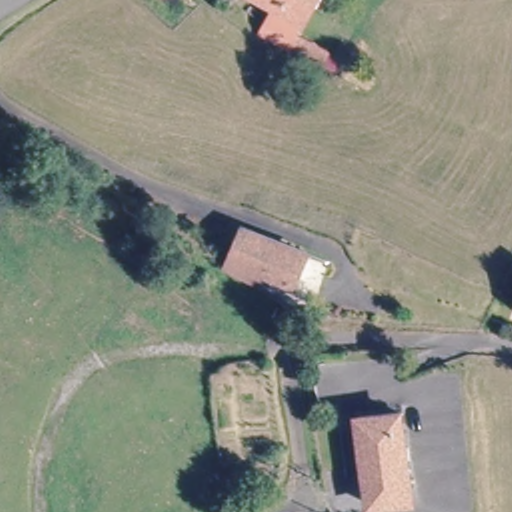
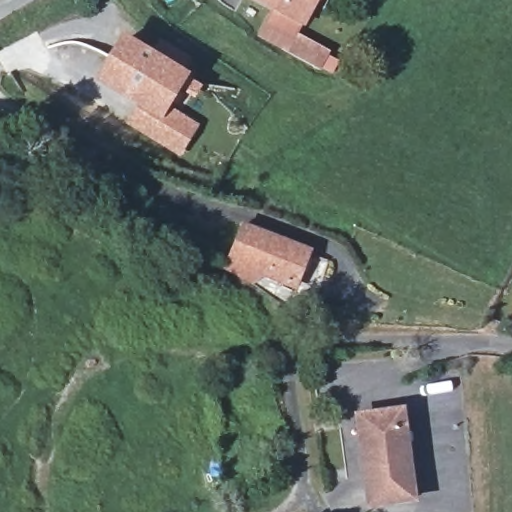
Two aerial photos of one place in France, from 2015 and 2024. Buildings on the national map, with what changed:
unchanged [(292,39),(274,29),(283,13),(258,0),(314,0),(292,39)]
new [(120,40),(180,73),(161,106),(192,123),(177,149),(131,123),(142,104),(99,80),(120,40)]
unchanged [(241,232),(308,256),(298,288),(229,267),(231,260),(241,232)]
unchanged [(407,486),(366,493),(356,431),(398,424),(407,486)]

